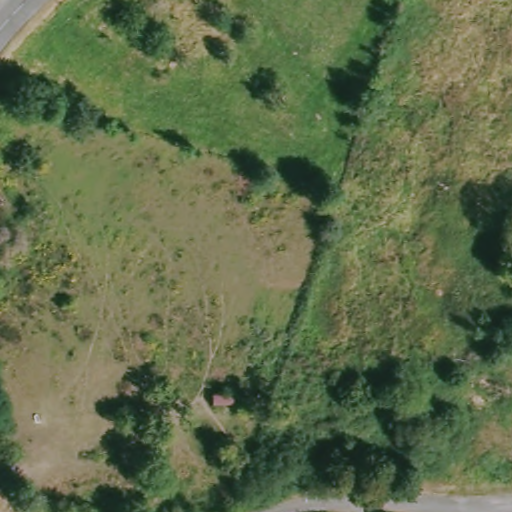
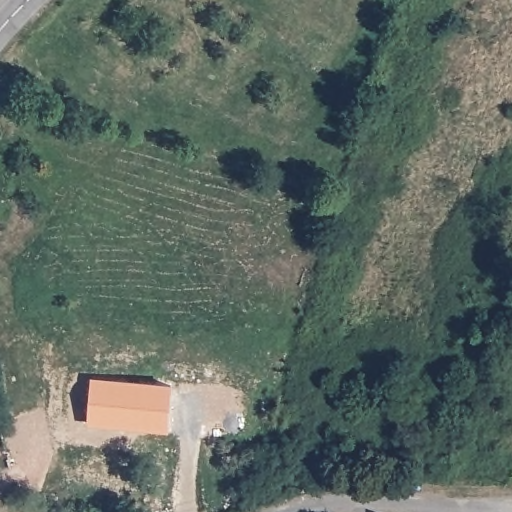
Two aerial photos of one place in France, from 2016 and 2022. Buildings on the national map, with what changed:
unchanged [(509,282),(510,261),(512,262),(512,283),(509,282)]
new [(92,380),(170,386),(167,430),(88,423),(92,380)]

